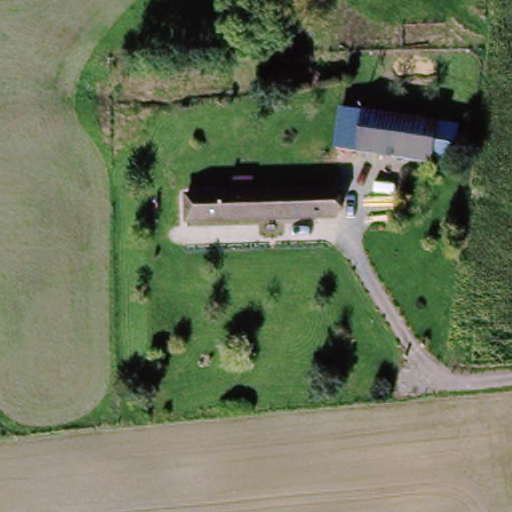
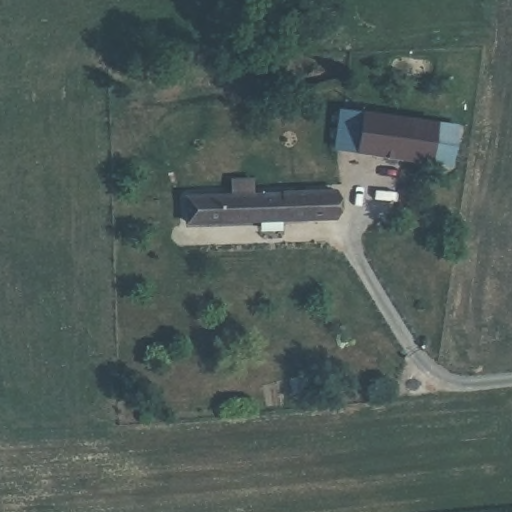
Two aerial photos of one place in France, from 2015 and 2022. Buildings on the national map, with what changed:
unchanged [(359,155),(365,116),(458,130),(452,169),(359,155)]
unchanged [(332,194),(332,219),(300,220),(185,223),(185,198),(332,194)]

